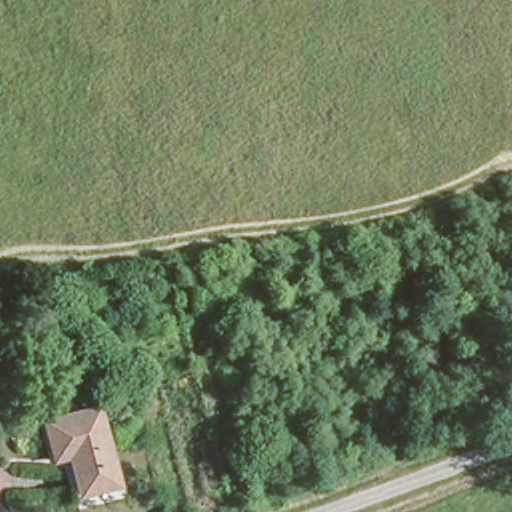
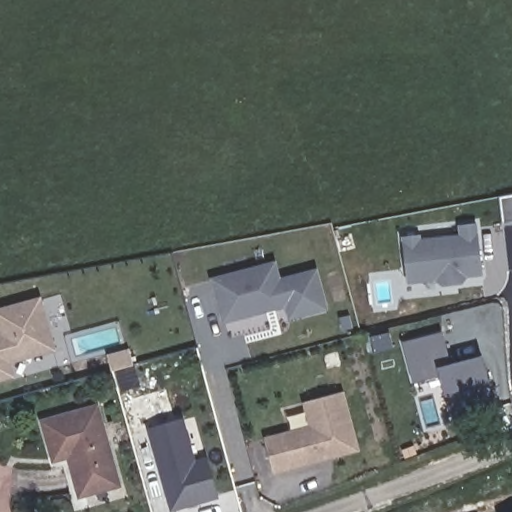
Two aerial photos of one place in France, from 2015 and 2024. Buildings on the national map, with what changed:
new [(512,195),(512,226),(503,227),(499,198),(512,195)]
new [(483,275),(468,277),(463,283),(442,286),(436,281),(408,284),(402,236),(422,234),(422,238),(458,234),(457,225),(479,223),(483,275)]
new [(330,309),(290,319),(287,307),(223,323),(211,277),(278,261),(282,276),(319,268),(330,309)]
new [(12,363),(16,377),(0,382),(0,306),(41,296),(56,352),(12,363)]
new [(491,383),(444,395),(439,376),(412,382),(402,341),(443,331),(452,361),(482,354),(491,383)]
new [(274,474),(264,437),(309,425),(303,402),(345,391),(361,451),(274,474)]
unchanged [(97,395),(119,480),(75,491),(64,447),(53,450),(42,407),(97,395)]
new [(196,460),(207,457),(219,499),(174,512),(171,512),(147,428),(184,418),(196,460)]

